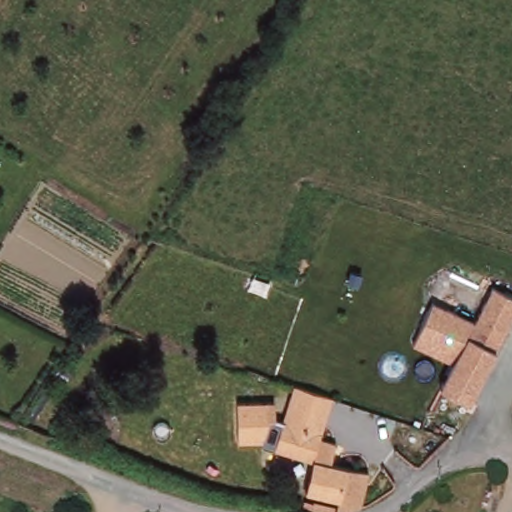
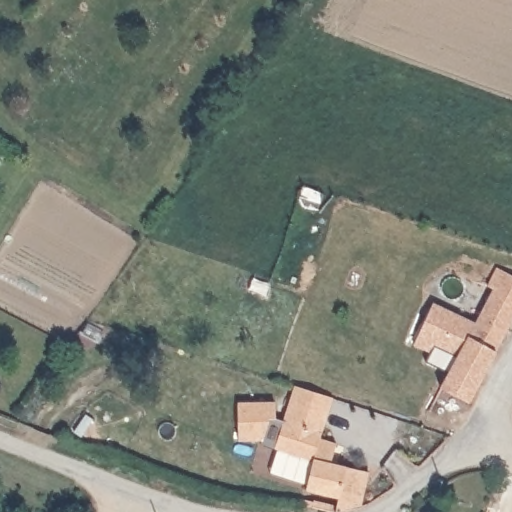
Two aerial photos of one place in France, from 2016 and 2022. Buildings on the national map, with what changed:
unchanged [(443,300),(476,331),(502,300),(512,308),(512,336),(509,340),(453,407),(429,386),(446,365),(437,357),(412,337),(417,332),(428,319),(443,300)]
unchanged [(263,393),(269,402),(280,404),(285,390),(325,401),(312,441),(329,446),(325,462),(360,472),(349,512),(331,512),(335,503),(305,492),(316,463),(275,450),(280,434),(267,430),(263,437),(241,447),(225,410),(260,394),(263,393)]

